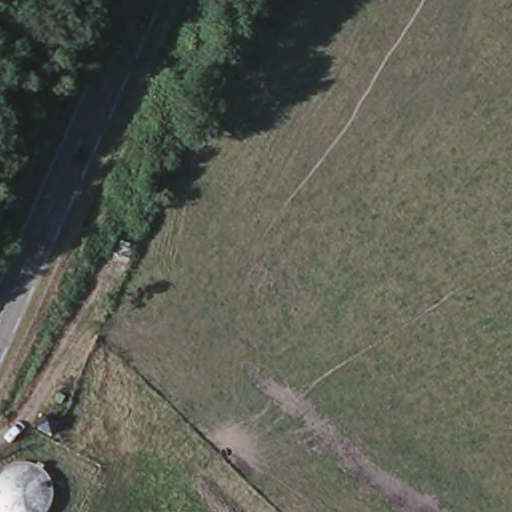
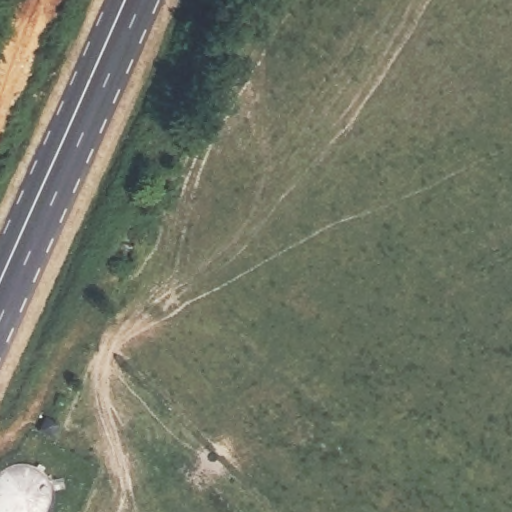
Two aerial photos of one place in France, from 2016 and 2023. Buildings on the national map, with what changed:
unchanged [(55,430),(68,435),(62,448),(49,443),(55,430)]

